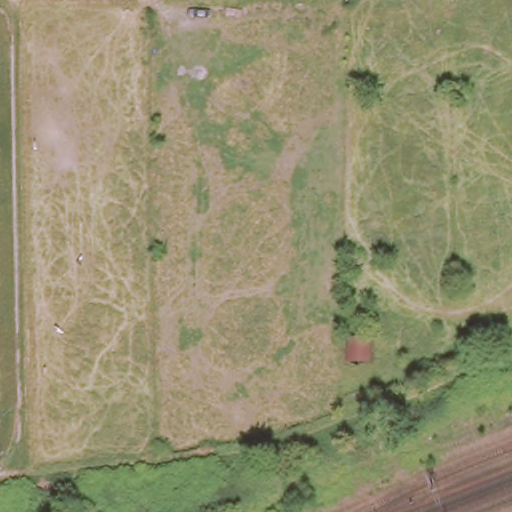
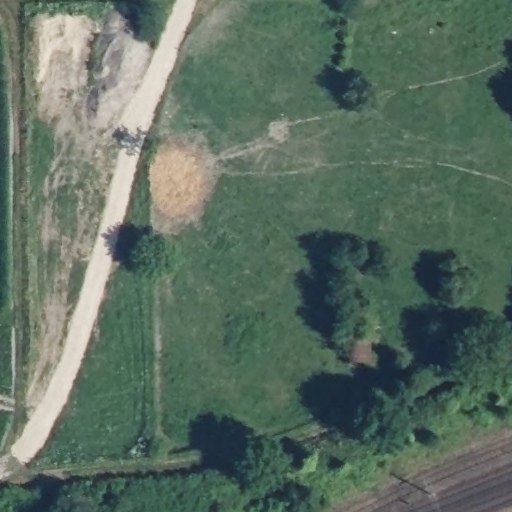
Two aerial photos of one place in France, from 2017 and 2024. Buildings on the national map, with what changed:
unchanged [(345,340),(369,342),(367,369),(345,366),(345,340)]

